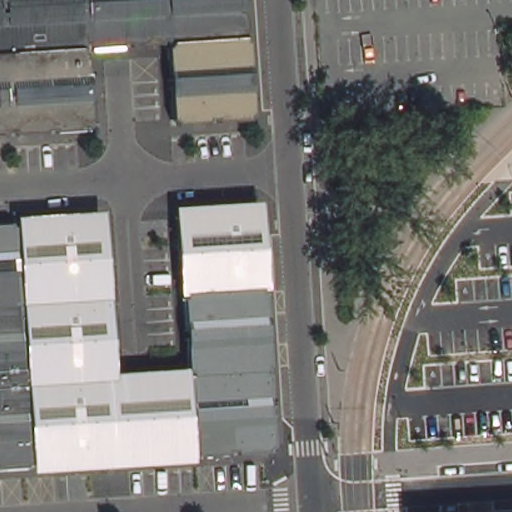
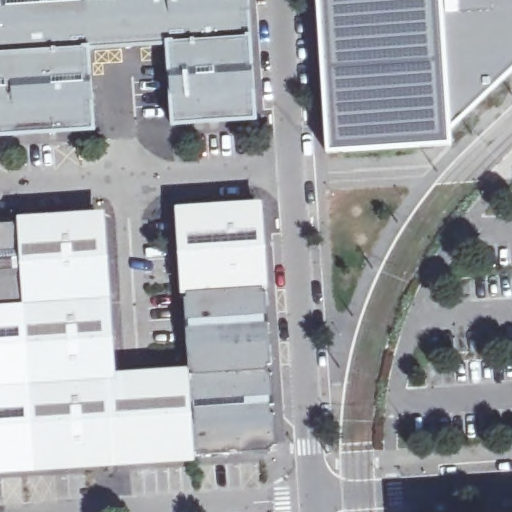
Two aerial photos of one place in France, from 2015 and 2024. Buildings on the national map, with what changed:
unchanged [(90,49),(85,50),(50,52),(0,55),(0,0),(86,0),(90,44),(90,49)]
unchanged [(129,43),(125,43),(125,46),(94,48),(94,49),(93,45),(91,46),(91,44),(90,44),(86,0),(127,0),(129,43)]
unchanged [(127,0),(245,0),(246,2),(248,1),(250,33),(248,33),(248,42),(251,42),(253,74),(250,74),(251,82),(254,82),(256,113),(253,114),(253,116),(251,116),(251,119),(219,121),(219,118),(211,119),(211,122),(180,124),(179,121),(177,121),(176,119),(174,119),(172,88),(175,87),(174,80),(171,80),(169,48),(168,48),(172,47),(172,45),(174,45),(174,44),(168,44),(168,39),(167,39),(167,41),(165,41),(165,45),(164,45),(164,43),(133,45),(133,43),(129,43),(127,0)]
new [(318,0),(441,0),(450,130),(451,147),(328,153),(318,0)]
new [(450,130),(441,0),(512,0),(512,71),(450,130)]
unchanged [(85,51),(87,51),(87,52),(91,52),(89,53),(91,83),(89,84),(89,93),(92,92),(94,123),(95,123),(95,124),(91,124),(92,127),(89,127),(90,129),(58,131),(58,129),(54,129),(50,52),(85,50),(85,51)]
unchanged [(49,129),(49,132),(17,134),(17,131),(9,132),(9,135),(0,135),(0,55),(50,52),(54,129),(49,129)]
unchanged [(187,289),(185,289),(183,257),(185,257),(185,249),(182,249),(180,218),(183,217),(183,215),(185,215),(185,212),(216,210),(217,213),(225,212),(225,209),(257,207),(257,210),(259,210),(259,212),(262,212),(264,244),(261,244),(262,252),(264,252),(266,284),(264,284),(264,289),(188,294),(187,289)]
unchanged [(195,453),(191,453),(192,456),(160,458),(159,455),(151,456),(151,458),(119,461),(119,458),(111,458),(111,461),(79,463),(79,461),(70,461),(70,464),(39,466),(39,463),(35,463),(25,305),(20,225),(23,225),(23,223),(55,221),(55,223),(64,222),(63,220),(95,218),(95,220),(98,220),(98,222),(100,222),(102,254),(100,254),(100,263),(103,263),(105,294),(102,295),(103,303),(105,303),(107,335),(105,335),(105,343),(108,343),(110,379),(146,377),(146,379),(155,379),(155,376),(186,374),(187,377),(188,377),(188,378),(190,378),(195,453)]
unchanged [(15,223),(15,226),(20,225),(25,305),(0,306),(0,224),(15,223)]
unchanged [(269,365),(269,371),(190,375),(189,373),(194,373),(194,372),(193,372),(193,370),(190,370),(188,338),(190,338),(190,330),(187,330),(185,298),(188,298),(188,294),(264,289),(264,293),(267,293),(269,324),(266,325),(267,333),(270,333),(272,365),(269,365)]
unchanged [(35,463),(30,464),(30,466),(0,468),(0,306),(25,305),(35,463)]
unchanged [(270,374),(272,374),(274,405),(271,405),(272,414),(275,414),(277,446),(274,446),(274,448),(272,448),(272,451),(240,453),(240,450),(232,451),(232,453),(201,455),(200,453),(195,453),(190,378),(190,375),(269,371),(270,374)]

